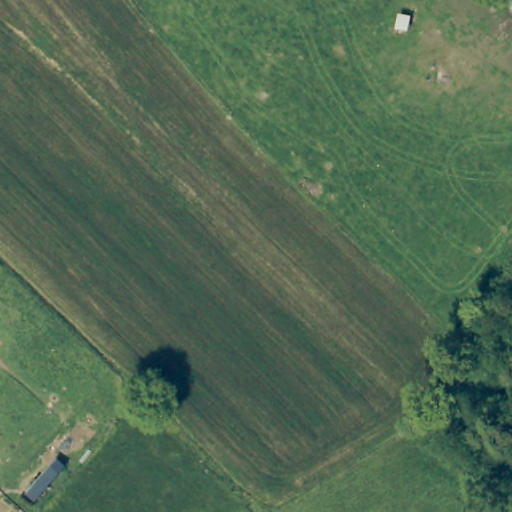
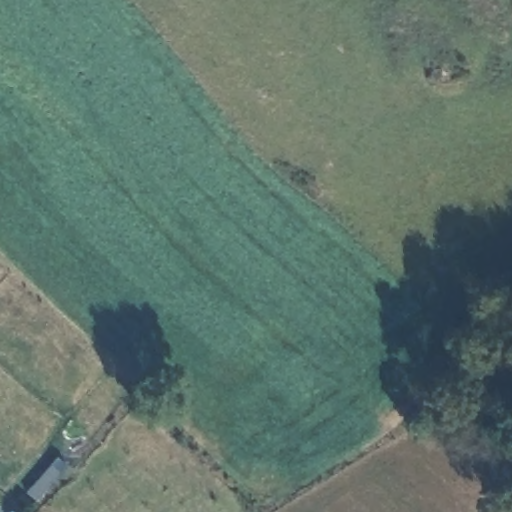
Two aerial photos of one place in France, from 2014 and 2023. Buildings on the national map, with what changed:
unchanged [(512,0),(512,12),(502,0),(512,0)]
unchanged [(8,254),(0,265),(0,245),(8,254)]

